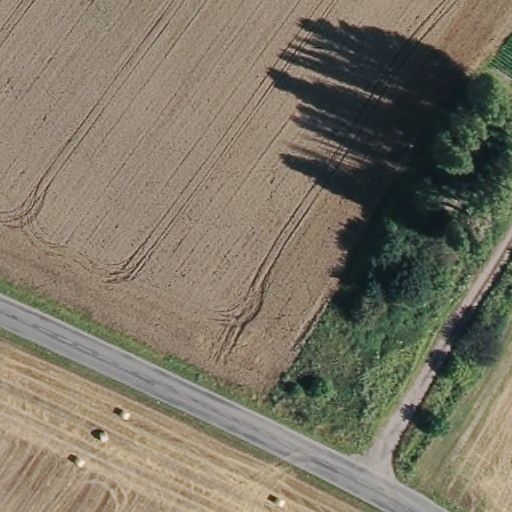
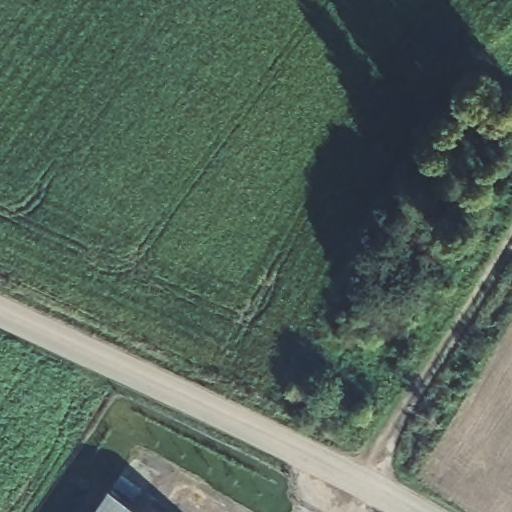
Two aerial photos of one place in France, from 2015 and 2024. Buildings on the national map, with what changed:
unchanged [(436,188),(455,199),(447,213),(429,203),(436,188)]
new [(138,512),(90,512),(105,489),(138,512)]

